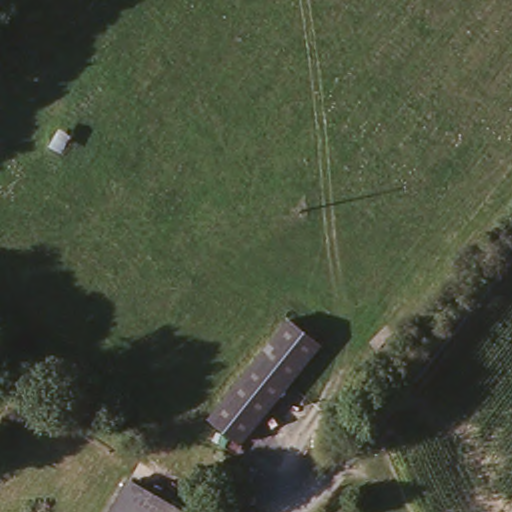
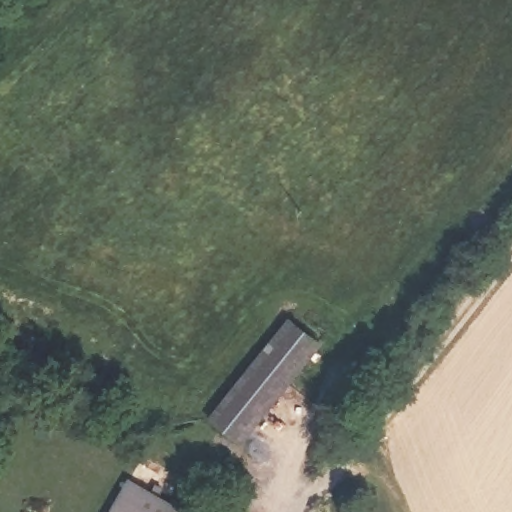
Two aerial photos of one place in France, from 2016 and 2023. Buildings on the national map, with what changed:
unchanged [(325,344),(239,445),(207,418),(294,318),(325,344)]
unchanged [(189,512),(115,512),(135,478),(189,512)]

